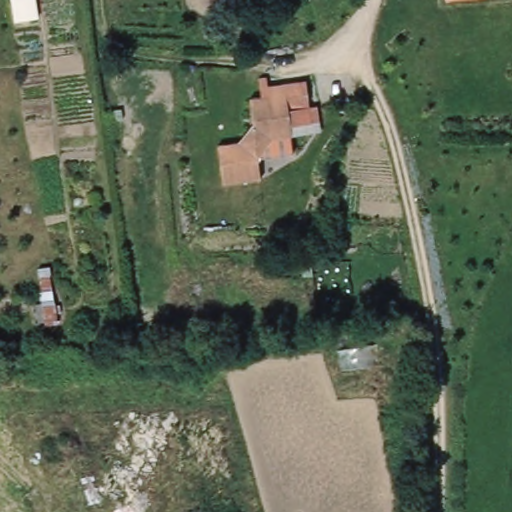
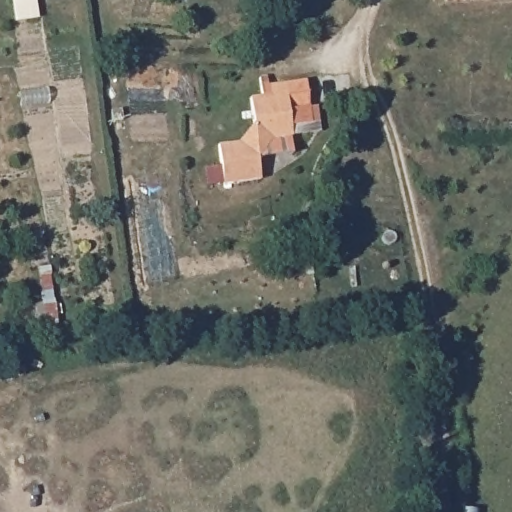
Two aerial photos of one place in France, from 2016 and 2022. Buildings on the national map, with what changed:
unchanged [(448,0),(470,0),(448,2),(448,0)]
unchanged [(276,135),(258,159),(262,181),(226,186),(220,147),(237,146),(254,120),(250,98),(270,95),(269,84),(283,81),(304,78),(309,103),(288,106),(293,132),(276,135)]

